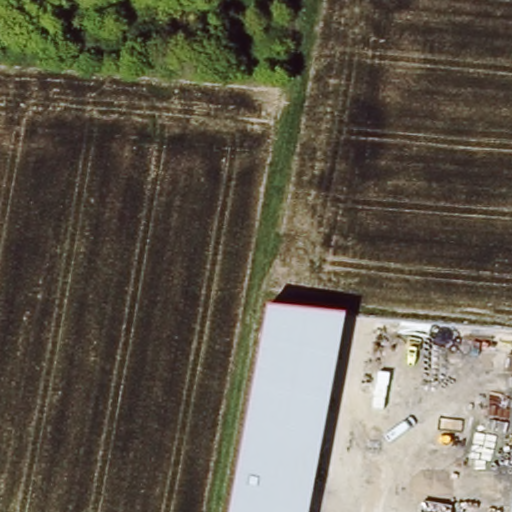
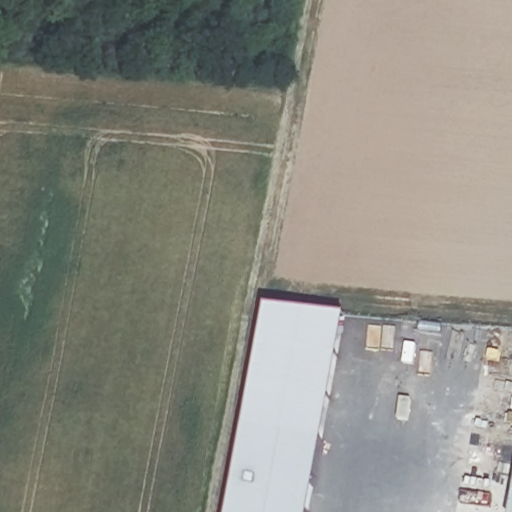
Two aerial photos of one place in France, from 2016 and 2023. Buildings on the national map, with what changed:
unchanged [(346,316),(310,512),(229,512),(267,307),(346,316)]

